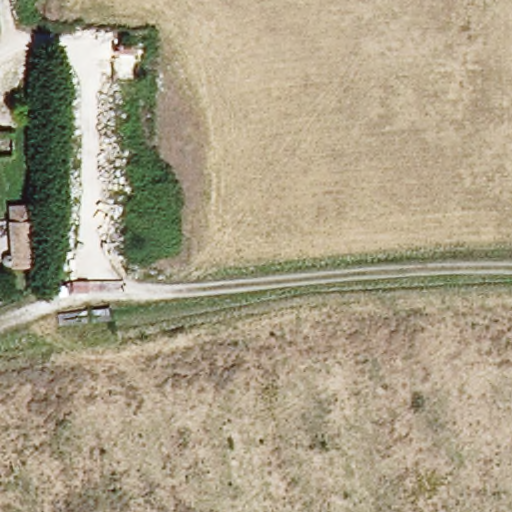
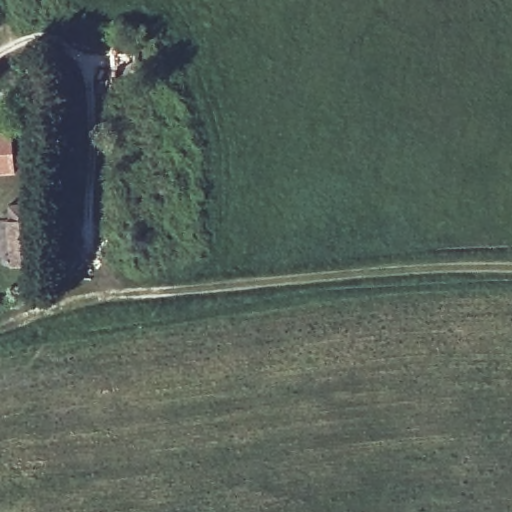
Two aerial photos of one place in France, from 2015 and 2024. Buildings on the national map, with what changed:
new [(12,129),(16,172),(0,173),(0,130),(12,129)]
unchanged [(8,262),(4,262),(0,261),(0,256),(4,254),(8,253),(6,219),(7,219),(7,204),(28,202),(28,217),(31,217),(33,262),(8,263),(8,262)]

